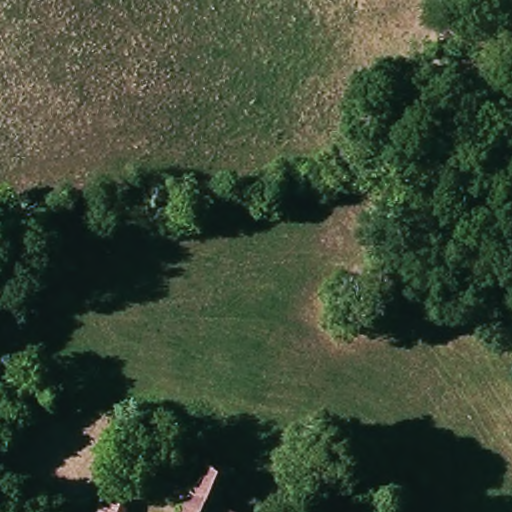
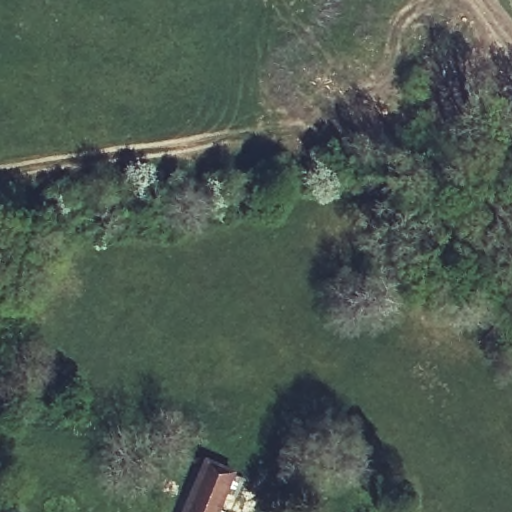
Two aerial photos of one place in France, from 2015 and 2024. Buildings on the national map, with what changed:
unchanged [(183,497),(156,490),(159,474),(191,483),(198,462),(239,477),(233,494),(220,490),(213,512),(178,512),(183,497)]

